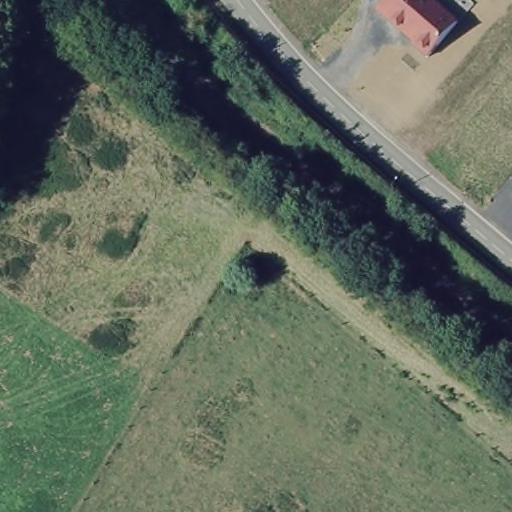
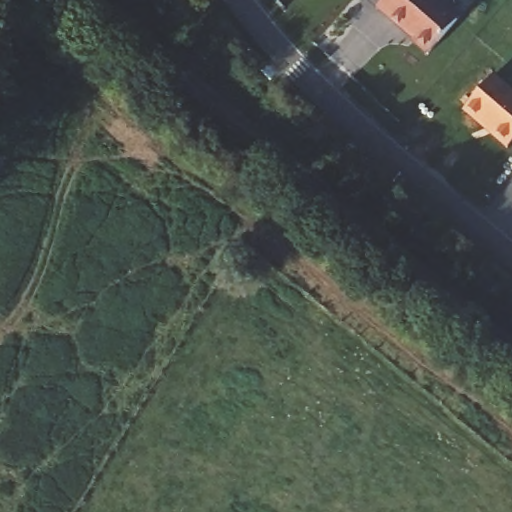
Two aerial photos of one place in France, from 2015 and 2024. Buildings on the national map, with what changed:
unchanged [(425,56),(374,13),(384,0),(434,0),(456,19),(425,56)]
new [(467,116),(476,105),(470,100),(492,75),(512,93),(512,140),(505,149),(467,116)]

